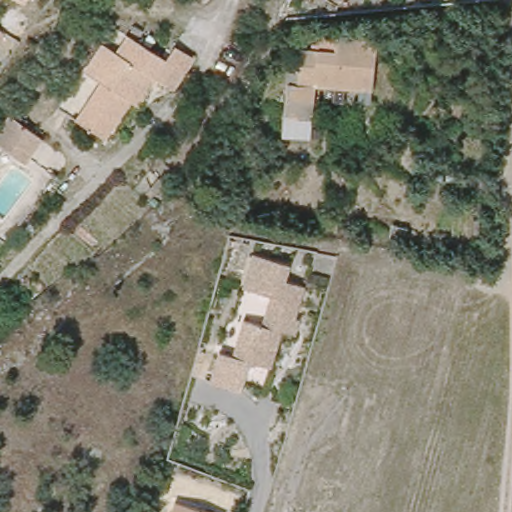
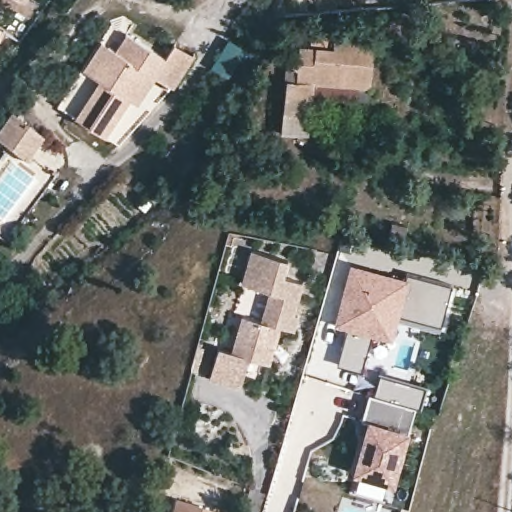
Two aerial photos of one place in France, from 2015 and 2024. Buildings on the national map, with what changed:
unchanged [(7,0),(25,0),(20,9),(7,0)]
unchanged [(0,38),(0,30),(4,32),(0,38)]
unchanged [(125,99),(100,136),(70,117),(95,80),(93,78),(78,69),(96,40),(111,50),(122,32),(160,57),(170,44),(189,56),(168,89),(150,77),(133,104),(125,99)]
unchanged [(323,97),(324,83),(314,82),(308,135),(281,132),(286,79),(296,80),(299,45),(333,47),(334,34),(375,36),(371,86),(370,100),(323,97)]
unchanged [(9,117),(68,162),(56,179),(25,166),(0,146),(0,127),(9,117)]
unchanged [(405,239),(390,235),(393,221),(407,225),(405,239)]
unchanged [(294,330),(280,326),(269,363),(250,357),(240,387),(210,378),(218,346),(232,350),(242,315),(261,320),(270,291),(242,283),(252,249),(289,260),(284,276),(303,281),(294,314),(298,315),(294,330)]
new [(338,365),(347,329),(335,325),(350,263),(405,279),(406,273),(450,285),(440,325),(399,314),(392,340),(370,335),(361,371),(338,365)]
new [(370,420),(363,417),(370,393),(415,407),(394,481),(355,470),(370,420)]
unchanged [(175,498),(221,512),(170,512),(175,498)]

